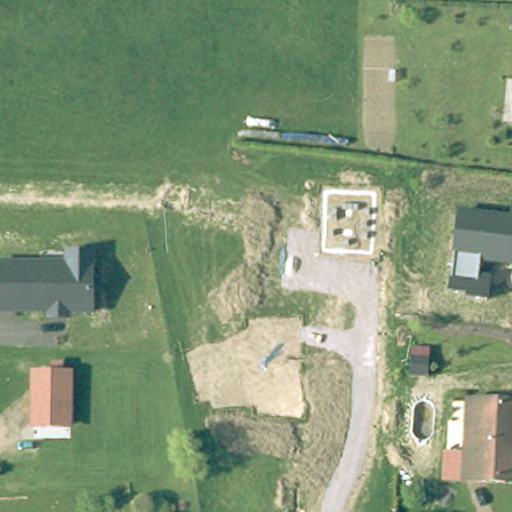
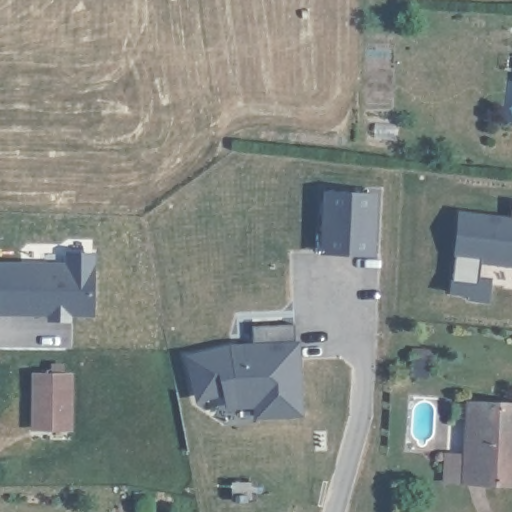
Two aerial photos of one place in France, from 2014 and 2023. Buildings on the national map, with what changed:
unchanged [(374,194),(370,253),(320,251),(323,193),(374,194)]
unchanged [(512,219),(512,267),(483,263),(482,276),(494,278),(490,300),(450,296),(458,211),(512,219)]
unchanged [(61,252),(98,251),(97,317),(0,315),(0,262),(62,261),(61,252)]
new [(302,415),(252,419),(251,406),(226,410),(223,395),(195,402),(183,353),(232,342),(253,340),(252,326),(296,324),(302,415)]
unchanged [(73,374),(72,428),(30,428),(32,374),(73,374)]
unchanged [(468,401),(512,404),(512,484),(465,481),(468,401)]
new [(444,450),(466,452),(465,481),(442,482),(444,450)]

